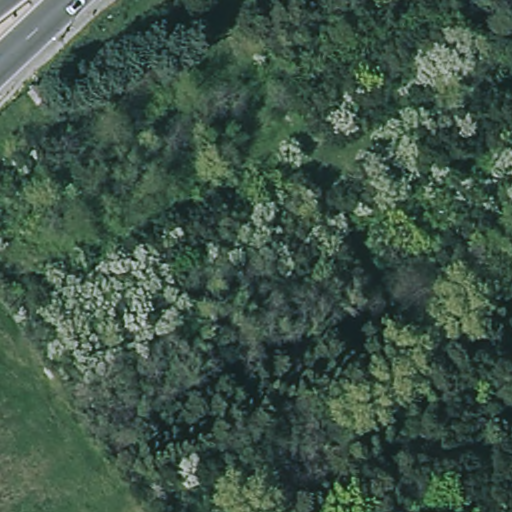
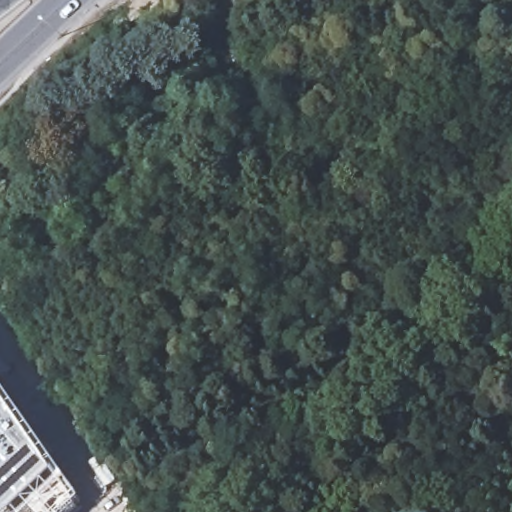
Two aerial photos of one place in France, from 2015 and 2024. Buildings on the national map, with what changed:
new [(83,501),(72,512),(0,512),(0,383),(83,501)]

